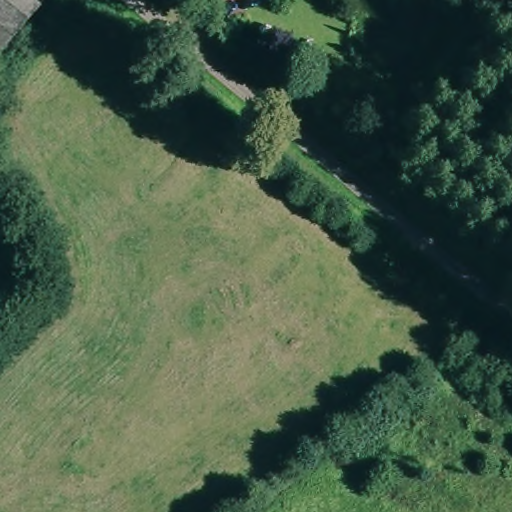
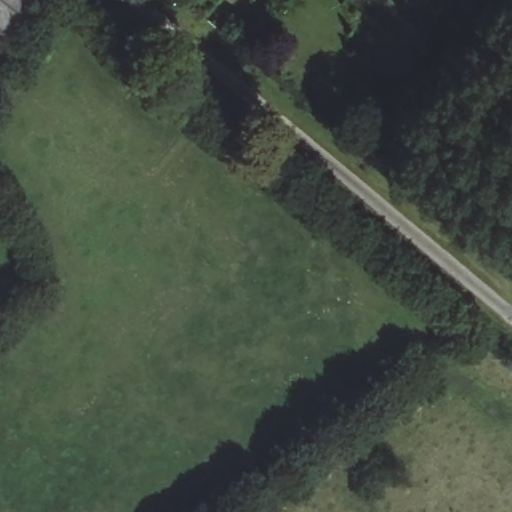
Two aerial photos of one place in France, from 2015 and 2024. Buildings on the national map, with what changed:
unchanged [(0,60),(0,0),(47,0),(0,60)]

